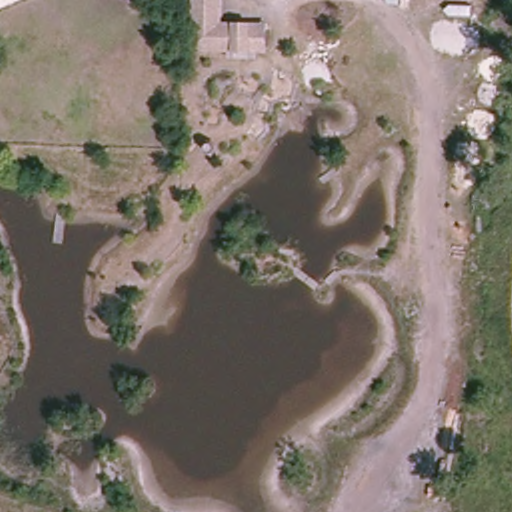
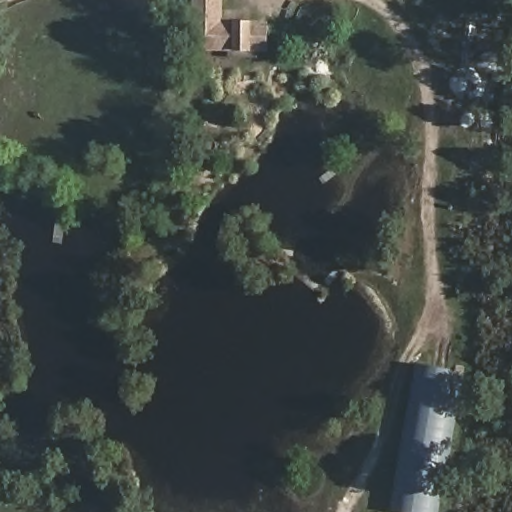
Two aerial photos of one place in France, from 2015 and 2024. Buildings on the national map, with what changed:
unchanged [(226,23),(273,22),(270,59),(194,56),(194,0),(225,0),(226,23)]
new [(394,512),(391,512),(419,367),(457,373),(436,512),(394,512)]

